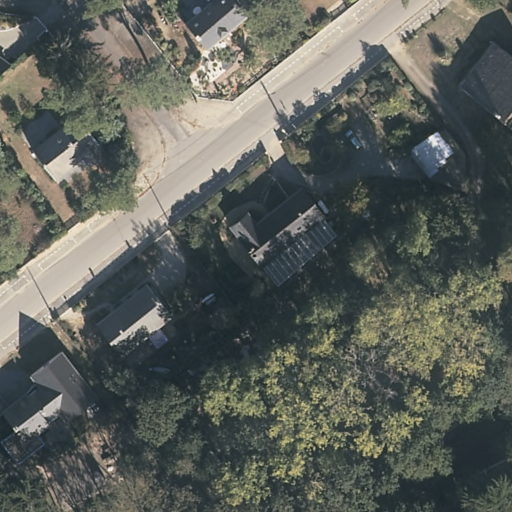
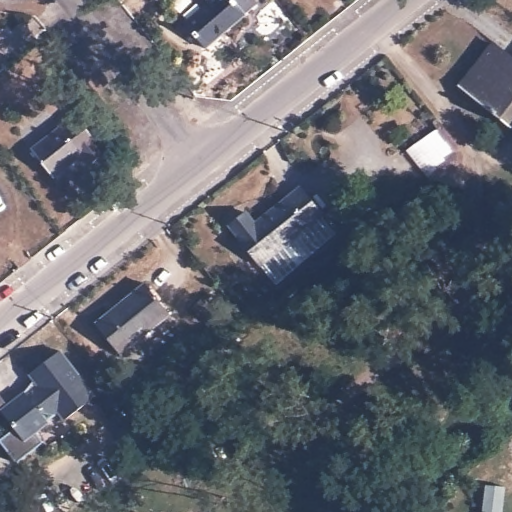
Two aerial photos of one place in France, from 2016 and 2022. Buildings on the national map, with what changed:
unchanged [(185,29),(212,6),(207,0),(248,0),(257,12),(246,22),(206,54),(185,29)]
unchanged [(508,123),(467,91),(502,47),(512,55),(512,118),(508,123)]
unchanged [(0,76),(0,56),(14,65),(0,76)]
unchanged [(105,151),(89,165),(82,156),(54,179),(32,151),(76,115),(105,151)]
unchanged [(448,143),(451,187),(412,170),(427,116),(448,143)]
unchanged [(340,238),(280,287),(235,231),(251,218),(260,230),(305,193),(340,238)]
unchanged [(175,319),(125,359),(101,329),(152,289),(175,319)]
unchanged [(0,413),(0,409),(22,392),(22,393),(34,383),(26,373),(59,347),(95,392),(62,418),(56,410),(45,420),(46,421),(33,431),(41,441),(15,463),(0,444),(0,438),(12,428),(0,413)]
unchanged [(464,512),(446,512),(438,501),(439,501),(458,487),(472,506),(464,512)]

